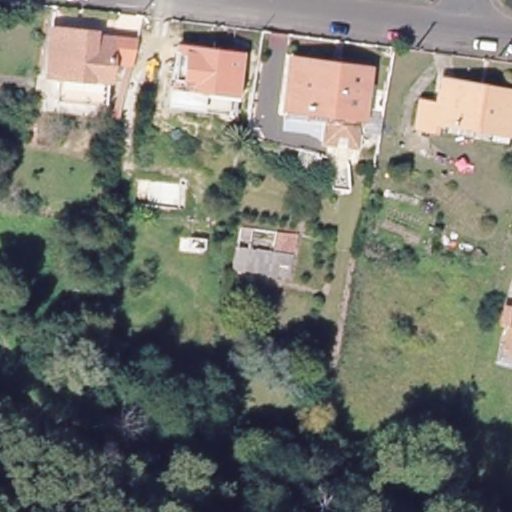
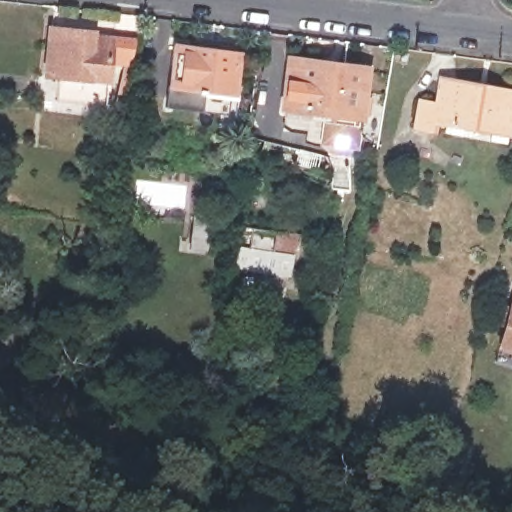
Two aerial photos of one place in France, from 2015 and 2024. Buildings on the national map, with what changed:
unchanged [(45,63),(37,63),(42,19),(80,23),(123,28),(117,51),(95,49),(93,69),(45,63)]
unchanged [(236,55),(231,94),(189,89),(188,96),(186,96),(185,101),(169,100),(171,86),(176,46),(236,55)]
unchanged [(324,140),(327,120),(284,115),(292,57),(366,66),(360,121),(357,144),(324,140)]
unchanged [(93,69),(90,94),(42,89),(45,63),(93,69)]
unchanged [(485,136),(487,127),(468,124),(467,133),(439,129),(441,119),(430,118),(429,126),(410,124),(414,98),(432,101),(436,76),(512,88),(512,94),(505,130),(504,130),(502,139),(485,136)]
unchanged [(250,241),(238,238),(239,229),(252,232),(250,241)]
unchanged [(276,236),(297,240),(294,252),(273,248),(276,236)]
unchanged [(289,281),(244,272),(232,270),(236,249),(248,251),(293,260),(289,281)]
unchanged [(503,348),(510,310),(512,303),(512,349),(503,348)]

